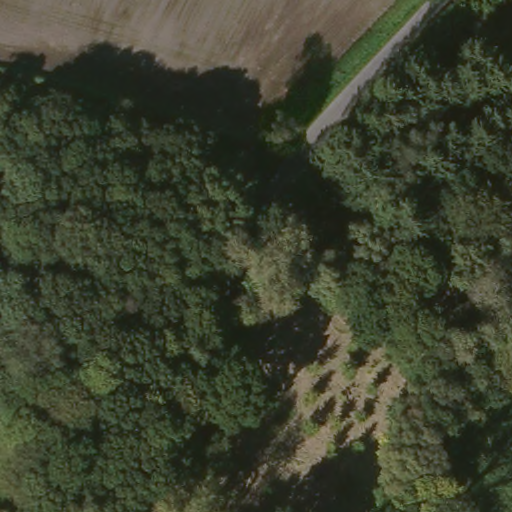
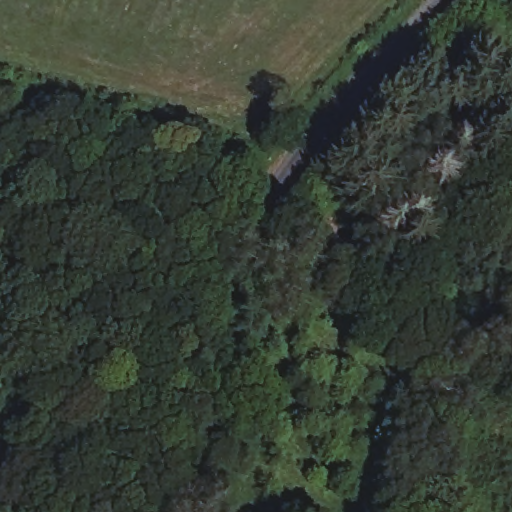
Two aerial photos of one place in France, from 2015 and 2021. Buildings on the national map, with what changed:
unchanged [(337,229),(319,250),(308,241),(326,219),(337,229)]

